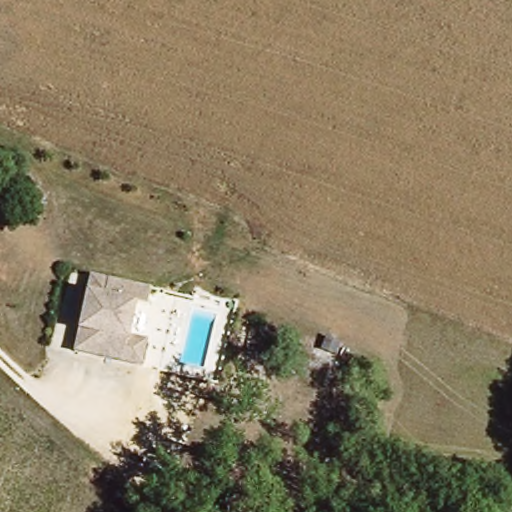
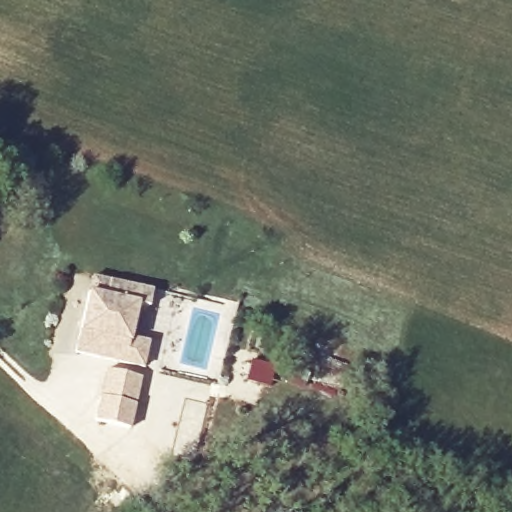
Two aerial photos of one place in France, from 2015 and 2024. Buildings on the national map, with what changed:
unchanged [(142,303),(130,301),(124,333),(142,338),(137,363),(70,348),(82,290),(85,273),(104,277),(145,286),(142,303)]
new [(129,428),(94,421),(105,370),(142,376),(129,428)]

